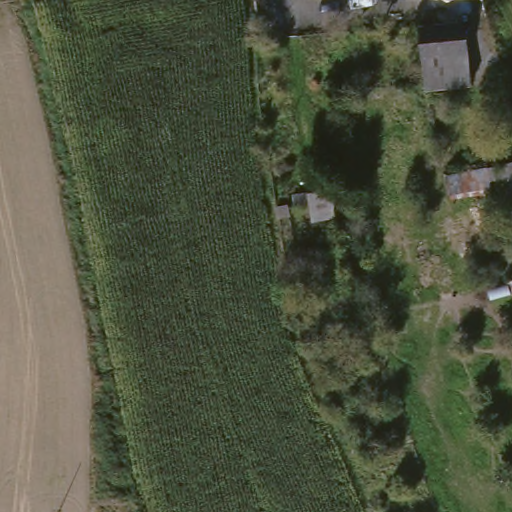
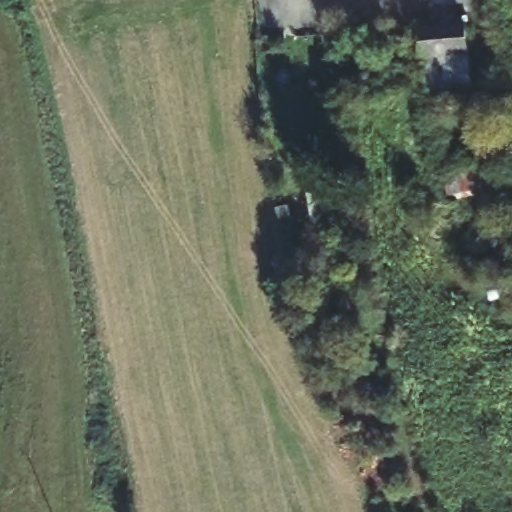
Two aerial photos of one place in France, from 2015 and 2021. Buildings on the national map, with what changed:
unchanged [(466,92),(421,96),(416,33),(460,28),(466,92)]
unchanged [(512,187),(456,194),(454,169),(512,161),(512,187)]
unchanged [(319,228),(314,209),(300,211),(298,202),(319,199),(337,195),(342,225),(319,228)]
unchanged [(295,222),(284,224),(282,213),(292,212),(295,222)]

